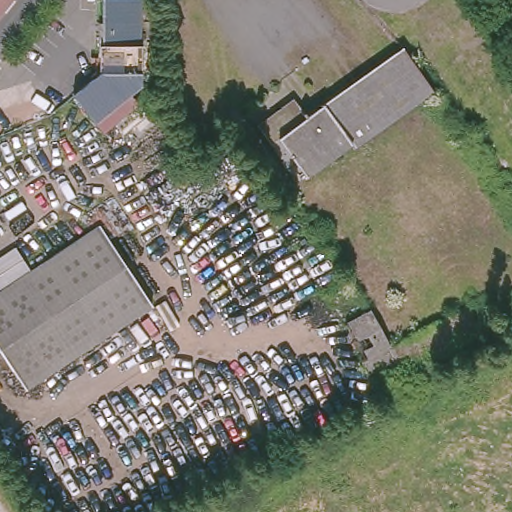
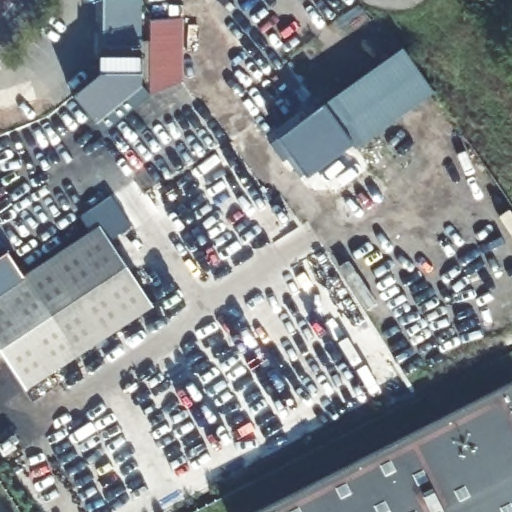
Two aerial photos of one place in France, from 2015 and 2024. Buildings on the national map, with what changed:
unchanged [(121,101),(124,106),(111,117),(107,112),(96,122),(73,93),(95,75),(97,41),(101,41),(101,0),(140,0),(140,85),(121,101)]
new [(299,0),(327,0),(311,14),(299,0)]
new [(181,86),(224,147),(197,164),(150,94),(152,22),(183,22),(181,86)]
unchanged [(404,54),(427,85),(435,97),(346,151),(343,147),(284,182),(248,126),(288,101),(300,117),(404,53),(404,54)]
unchanged [(0,344),(0,259),(22,245),(37,267),(96,230),(87,212),(119,192),(136,219),(111,233),(157,306),(28,387),(0,344)]
demolished [(389,351),(442,321),(456,347),(403,377),(389,351)]
demolished [(373,393),(358,367),(389,351),(403,377),(373,393)]
new [(512,386),(512,512),(261,512),(512,386)]

